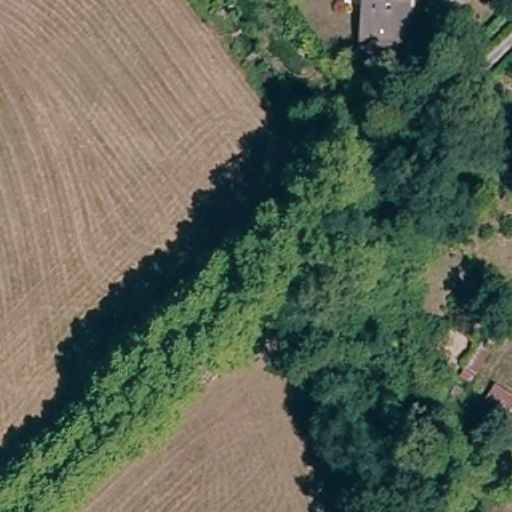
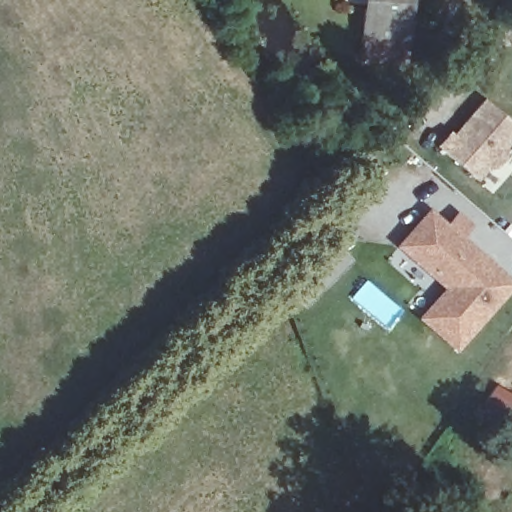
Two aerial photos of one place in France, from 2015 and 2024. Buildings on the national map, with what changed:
unchanged [(392,51),(359,50),(362,0),(396,0),(403,0),(402,13),(401,34),(400,52),(392,51)]
new [(505,157),(495,167),(487,167),(476,179),(436,145),(449,131),(454,134),(484,99),(512,122),(512,141),(503,150),(505,157)]
new [(417,317),(444,288),(396,246),(428,207),(512,280),(512,287),(455,351),(417,317)]

